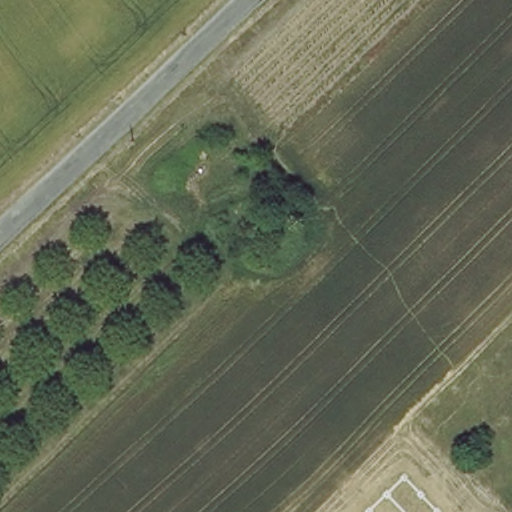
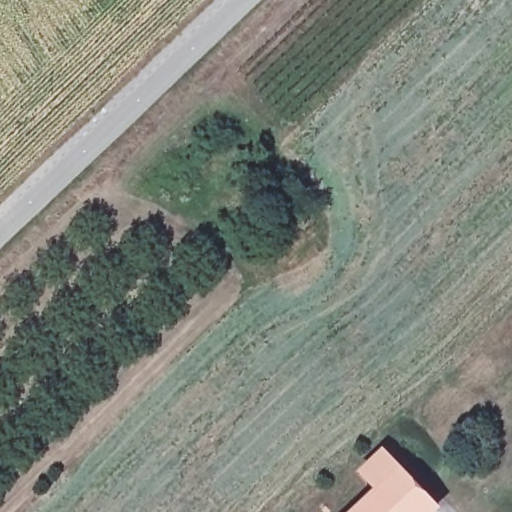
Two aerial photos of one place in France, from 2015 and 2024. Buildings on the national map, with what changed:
new [(360,474),(385,451),(444,512),(356,512),(377,493),(360,474)]

